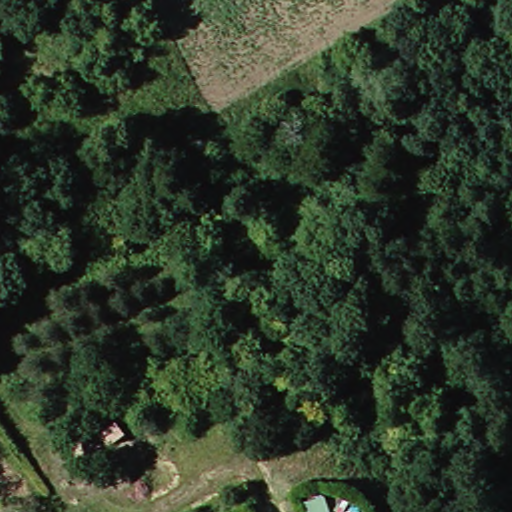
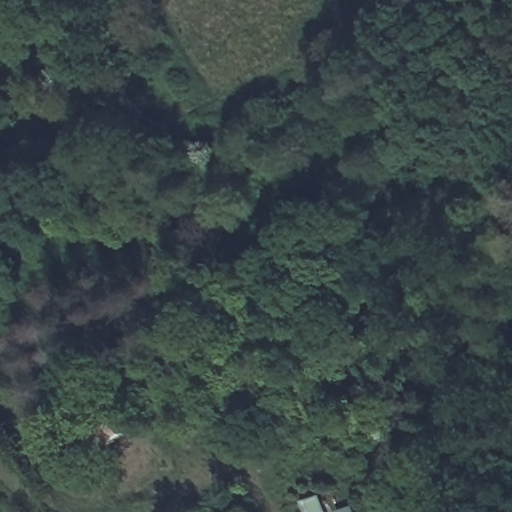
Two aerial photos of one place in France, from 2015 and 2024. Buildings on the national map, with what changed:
unchanged [(80,458),(94,445),(108,459),(93,473),(80,458)]
unchanged [(308,512),(308,511),(324,505),(326,512),(308,512)]

